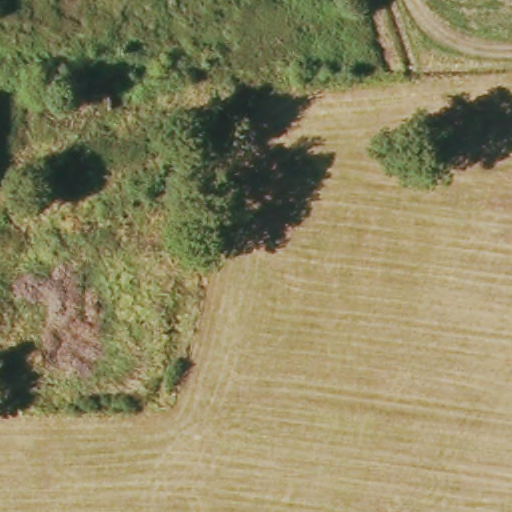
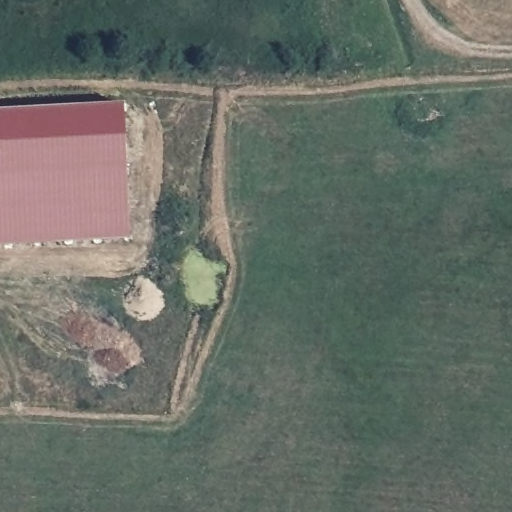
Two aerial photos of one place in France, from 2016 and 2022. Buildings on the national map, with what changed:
new [(129,240),(0,246),(0,112),(122,106),(129,240)]

